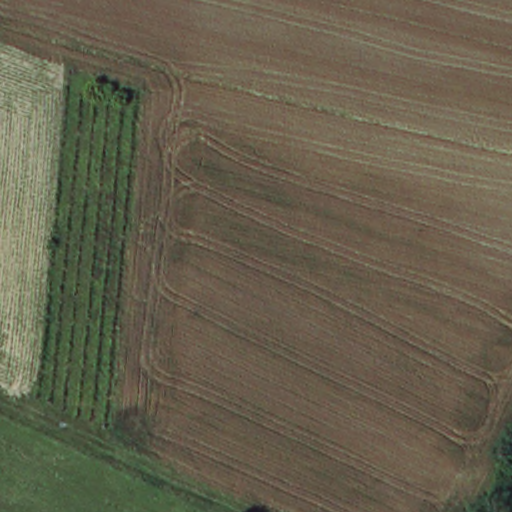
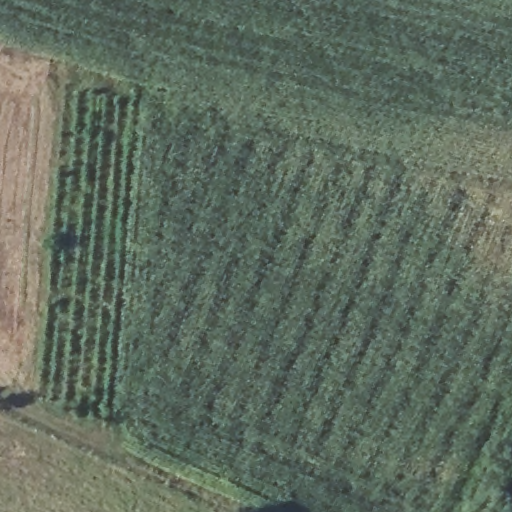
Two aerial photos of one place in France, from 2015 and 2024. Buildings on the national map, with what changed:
[]

